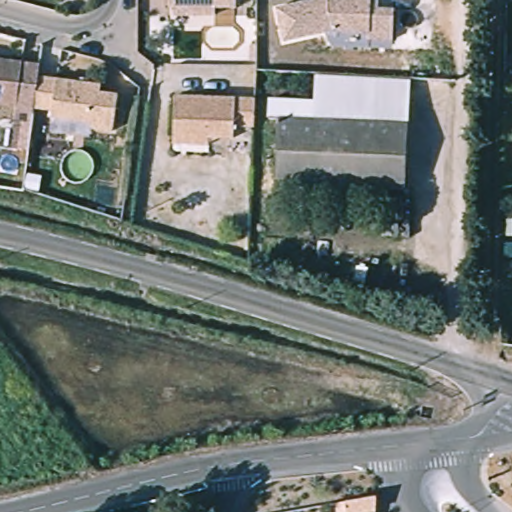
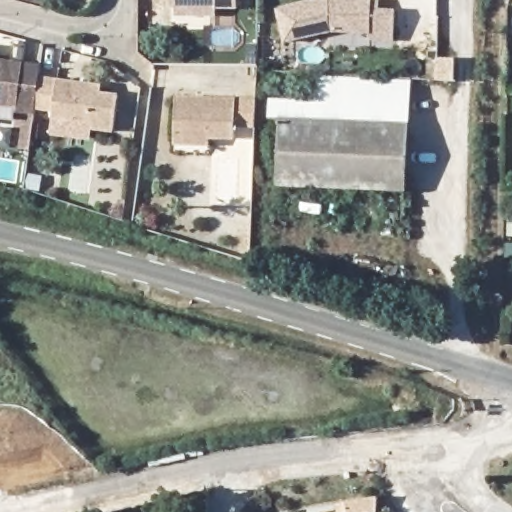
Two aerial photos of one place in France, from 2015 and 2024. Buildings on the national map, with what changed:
unchanged [(168,14),(168,7),(162,7),(162,0),(232,0),(232,7),(210,7),(210,14),(168,14)]
unchanged [(311,0),(380,0),(380,8),(395,9),(391,43),(370,42),(370,33),(333,31),(284,40),(276,10),(311,0)]
unchanged [(20,64),(41,66),(39,78),(34,111),(34,114),(13,111),(14,106),(0,104),(0,61),(20,64)]
unchanged [(102,87),(101,94),(119,97),(114,132),(93,130),(94,126),(52,120),(52,114),(34,111),(39,78),(102,87)]
unchanged [(280,117),(271,117),(272,101),(317,104),(318,78),(409,84),(403,192),(276,184),(280,117)]
unchanged [(172,140),(173,133),(177,93),(256,100),(254,127),(234,125),(233,138),(209,136),(208,143),(172,140)]
unchanged [(377,512),(346,512),(346,510),(378,505),(377,512)]

